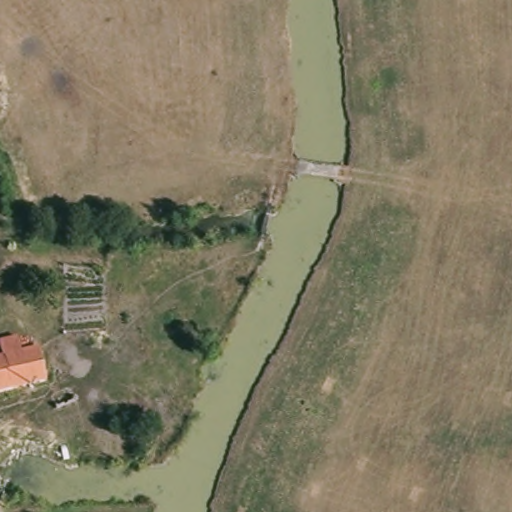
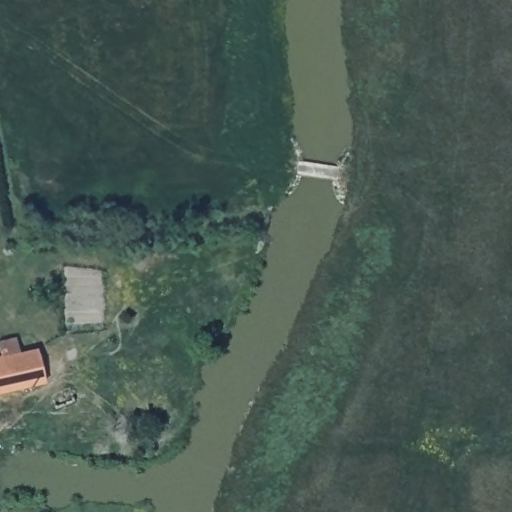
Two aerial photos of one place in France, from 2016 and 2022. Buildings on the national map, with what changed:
unchanged [(4,361),(0,351),(0,349),(17,345),(22,362),(37,360),(42,387),(39,387),(0,395),(0,362),(4,361)]
unchanged [(75,395),(78,412),(58,416),(54,398),(75,395)]

